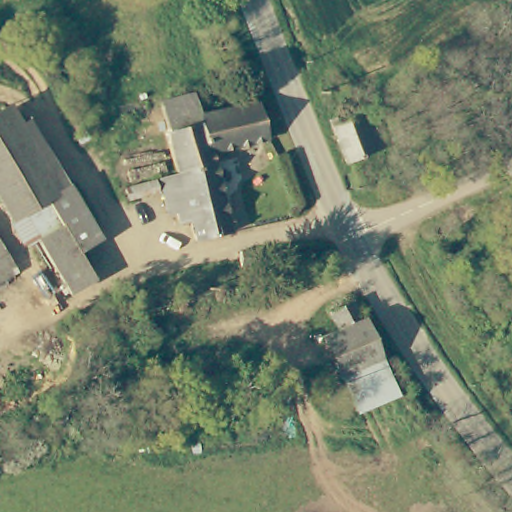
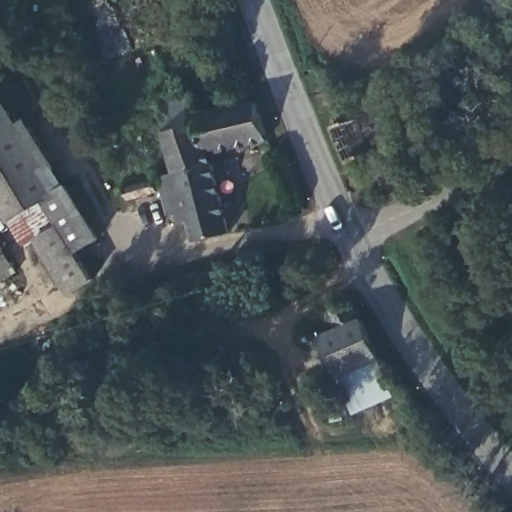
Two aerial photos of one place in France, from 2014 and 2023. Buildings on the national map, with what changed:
unchanged [(174,169),(164,127),(167,126),(160,96),(193,90),(198,111),(255,97),(266,136),(209,150),(211,160),(174,170),(174,169)]
unchanged [(326,119),(335,115),(337,123),(359,115),(360,119),(375,114),(387,144),(345,165),(326,119)]
unchanged [(0,115),(47,192),(39,197),(5,216),(0,208),(0,115)]
unchanged [(227,230),(194,237),(188,214),(178,216),(175,207),(167,210),(160,172),(174,169),(174,170),(211,160),(227,230)]
unchanged [(122,183),(154,176),(156,188),(125,194),(122,183)]
unchanged [(60,185),(91,236),(71,251),(86,275),(62,289),(30,238),(55,223),(39,197),(47,192),(60,185)]
unchanged [(5,216),(39,197),(55,223),(30,238),(21,244),(5,216)]
unchanged [(0,283),(0,246),(17,273),(0,283)]
unchanged [(228,257),(251,253),(254,265),(230,270),(228,257)]
unchanged [(321,333),(336,326),(329,308),(351,297),(363,316),(390,390),(349,405),(321,333)]

